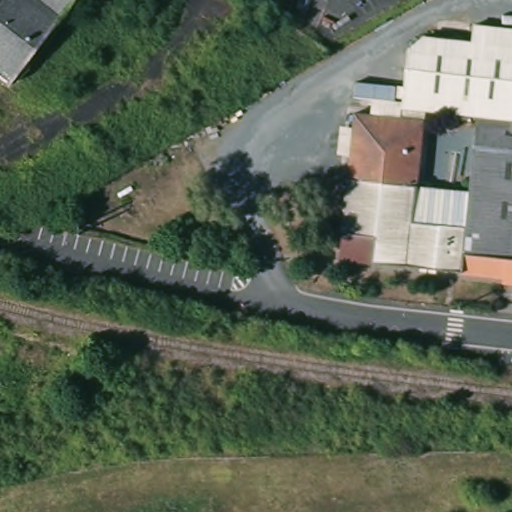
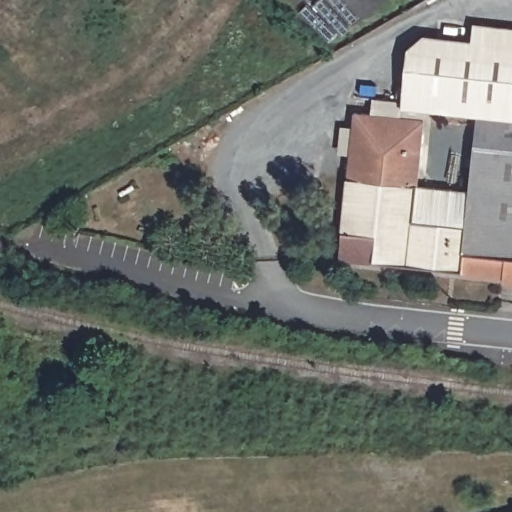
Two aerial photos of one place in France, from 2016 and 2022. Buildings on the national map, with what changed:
demolished [(8,83),(0,77),(0,0),(71,0),(8,83)]
unchanged [(418,117),(411,183),(342,175),(348,110),(418,117)]

